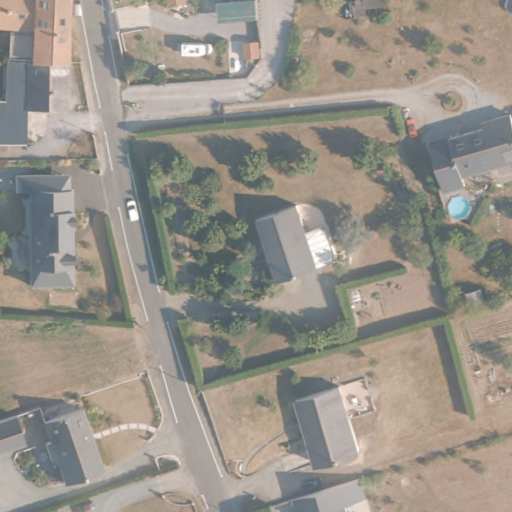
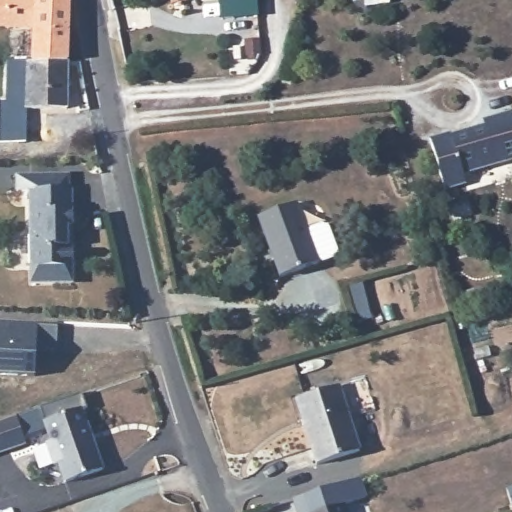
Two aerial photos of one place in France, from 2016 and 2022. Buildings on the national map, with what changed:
unchanged [(32,34),(0,31),(0,0),(66,0),(64,62),(30,62),(32,34)]
unchanged [(172,6),(172,0),(185,0),(186,5),(172,6)]
unchanged [(30,62),(64,62),(63,111),(24,111),(23,136),(15,135),(14,146),(0,146),(0,110),(6,110),(6,62),(30,62)]
unchanged [(492,124),(511,118),(512,120),(512,165),(461,180),(464,192),(440,199),(426,148),(450,140),(452,145),(486,135),(492,124)]
unchanged [(56,288),(31,289),(29,196),(17,196),(16,180),(44,180),(67,179),(68,194),(70,194),(72,272),(73,288),(56,288)]
unchanged [(330,253),(326,258),(313,264),(271,278),(251,219),(293,204),(295,211),(301,231),(315,226),(323,229),(330,253)]
new [(56,322),(55,352),(35,351),(35,375),(0,374),(0,319),(56,322)]
unchanged [(336,390),(356,454),(313,465),(295,401),(336,390)]
unchanged [(81,410),(101,470),(62,484),(56,465),(51,467),(44,443),(49,441),(42,423),(81,410)]
unchanged [(12,417),(22,451),(0,458),(0,421),(12,417)]
unchanged [(343,508),(345,512),(331,512),(343,508)]

